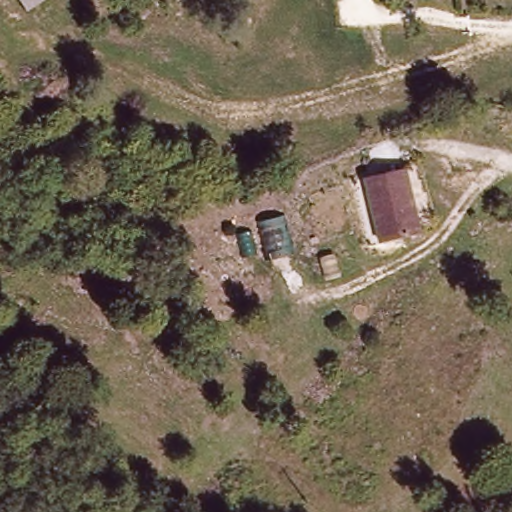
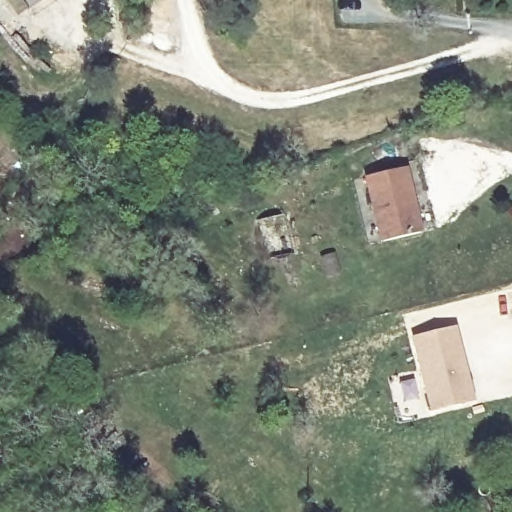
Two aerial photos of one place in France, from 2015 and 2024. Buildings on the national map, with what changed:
unchanged [(18,0),(60,0),(31,17),(18,0)]
unchanged [(407,174),(427,241),(391,252),(370,186),(407,174)]
new [(455,330),(470,405),(427,413),(412,338),(455,330)]

